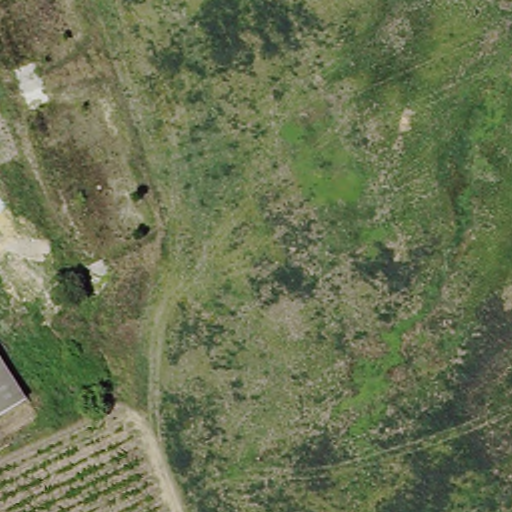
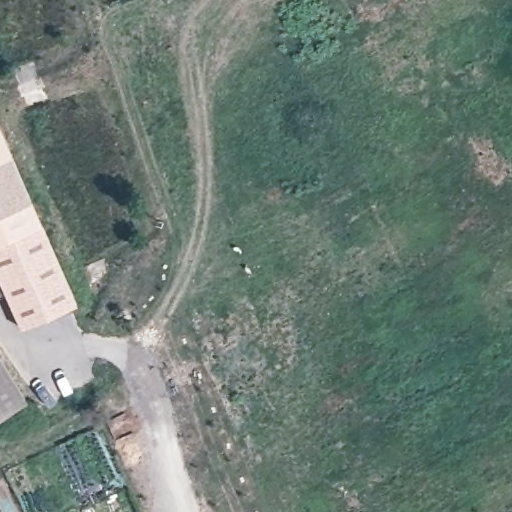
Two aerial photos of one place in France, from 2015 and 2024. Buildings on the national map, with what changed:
new [(77,302),(22,326),(0,275),(0,124),(77,302)]
unchanged [(0,419),(0,347),(32,399),(0,419)]

